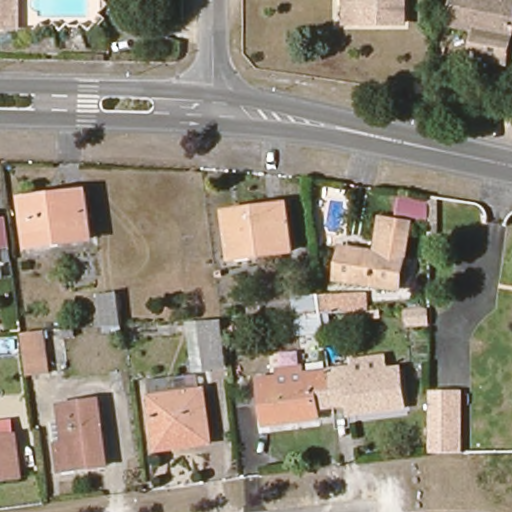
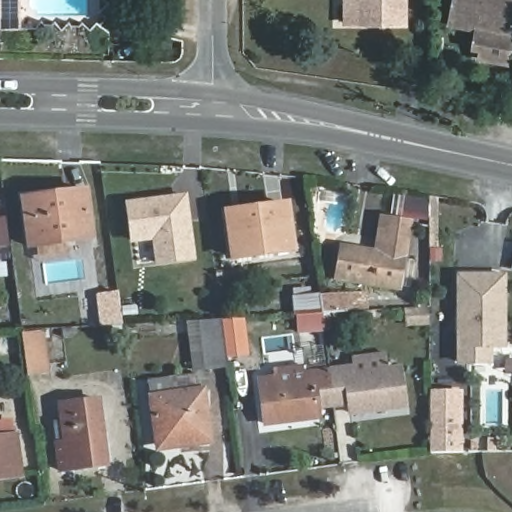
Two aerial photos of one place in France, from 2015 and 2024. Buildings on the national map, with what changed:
unchanged [(23,28),(0,28),(0,0),(23,0),(23,28)]
unchanged [(345,0),(406,0),(406,23),(357,24),(346,25),(345,0)]
unchanged [(506,57),(479,52),(481,40),(472,38),(475,24),(449,19),(453,0),(512,0),(512,28),(511,31),(506,57)]
unchanged [(85,191),(91,238),(30,247),(25,199),(85,191)]
new [(195,258),(159,263),(156,239),(134,241),(129,204),(186,196),(195,258)]
unchanged [(233,260),(226,212),(287,203),(294,251),(233,260)]
unchanged [(375,252),(383,217),(413,223),(399,291),(337,277),(343,246),(375,252)]
new [(502,348),(488,348),(488,366),(460,366),(461,278),(502,279),(502,348)]
unchanged [(105,327),(101,296),(119,294),(123,325),(105,327)]
unchanged [(299,332),(298,315),(297,298),(320,297),(347,295),(348,302),(360,302),(361,312),(348,312),(322,313),(324,330),(299,332)]
unchanged [(223,325),(229,370),(207,373),(193,375),(187,327),(202,326),(223,325)]
unchanged [(44,330),(49,373),(29,376),(23,331),(44,330)]
unchanged [(288,421),(265,424),(259,378),(275,377),(275,369),(280,368),(279,366),(305,363),(305,366),(311,365),(312,372),(329,370),(334,405),(318,407),(319,417),(288,421)]
unchanged [(351,403),(334,405),(329,370),(354,367),(355,373),(400,370),(404,408),(382,411),(352,415),(351,403)]
unchanged [(157,443),(150,387),(201,380),(210,447),(187,451),(158,453),(157,443)]
unchanged [(465,391),(465,452),(463,452),(432,453),(431,392),(465,391)]
unchanged [(92,467),(62,472),(55,422),(63,422),(61,406),(101,400),(105,436),(108,466),(92,467)]
unchanged [(16,436),(21,476),(0,479),(0,438),(16,436)]

